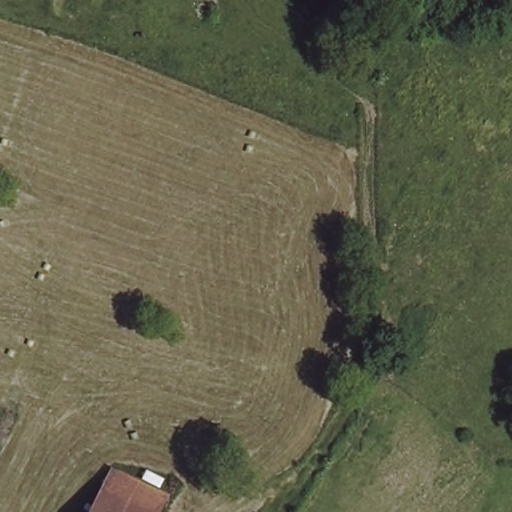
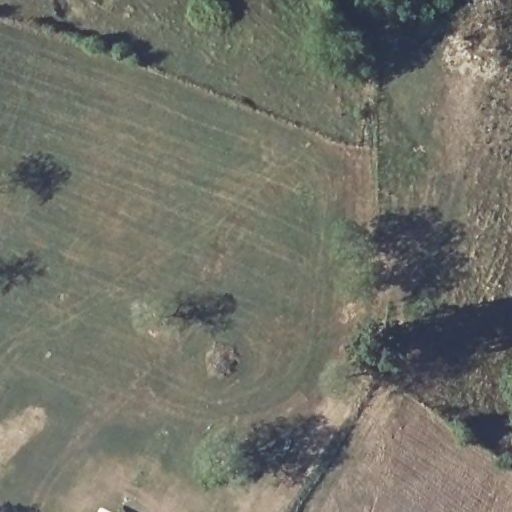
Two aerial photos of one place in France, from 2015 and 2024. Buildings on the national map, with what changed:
demolished [(165,496),(157,512),(91,512),(113,472),(165,496)]

